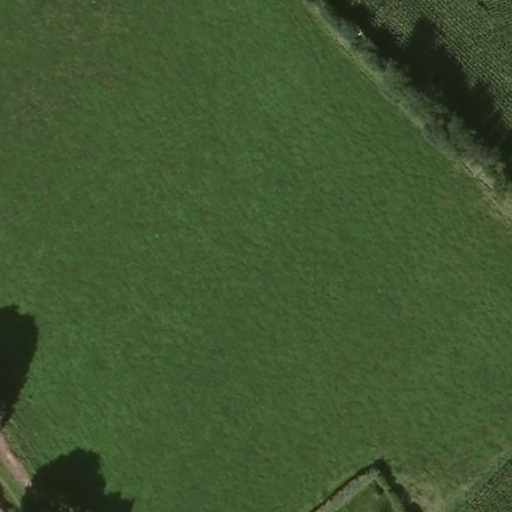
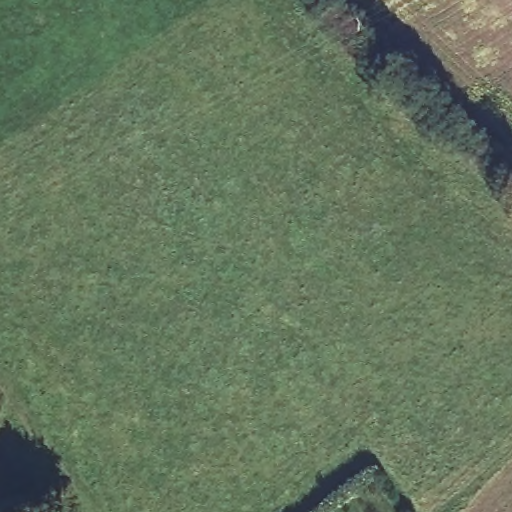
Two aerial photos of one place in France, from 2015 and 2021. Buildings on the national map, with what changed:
[]

